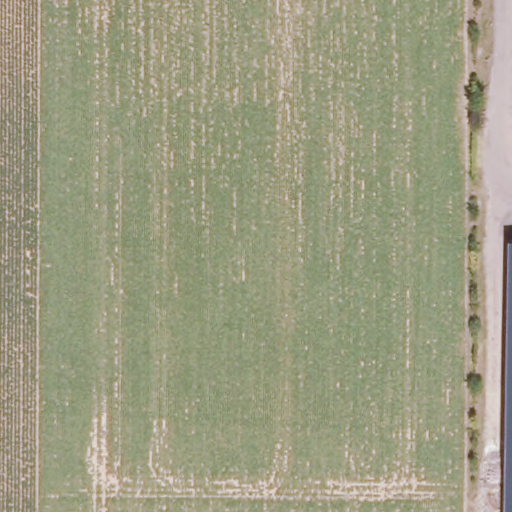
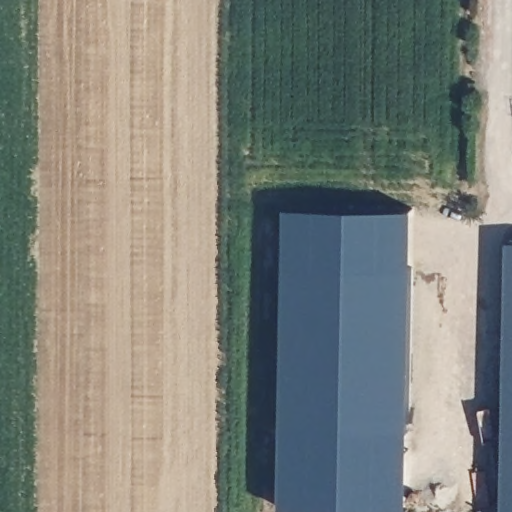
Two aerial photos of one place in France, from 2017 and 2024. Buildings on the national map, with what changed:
new [(414,215),(414,274),(288,272),(288,213),(414,215)]
new [(509,241),(512,241),(512,512),(508,512),(509,241)]
new [(414,274),(412,436),(286,435),(288,272),(414,274)]
new [(412,436),(411,512),(285,512),(286,435),(412,436)]

